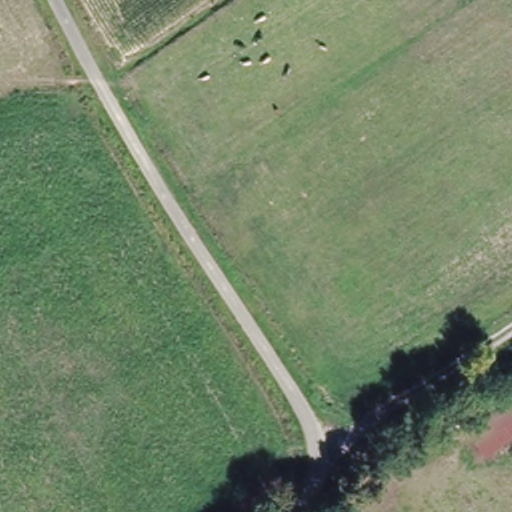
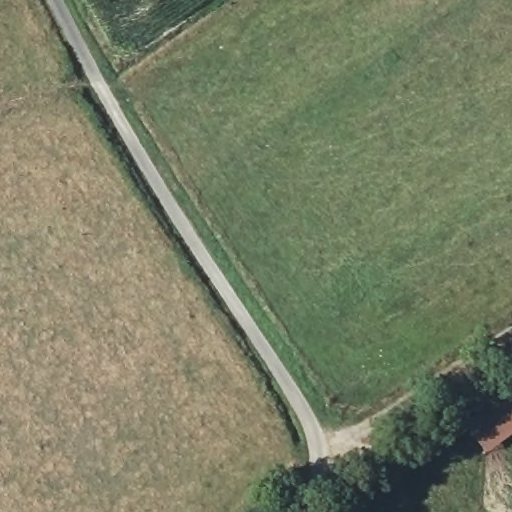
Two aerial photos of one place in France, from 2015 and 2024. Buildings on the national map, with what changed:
unchanged [(512,391),(512,432),(482,455),(463,426),(512,391)]

